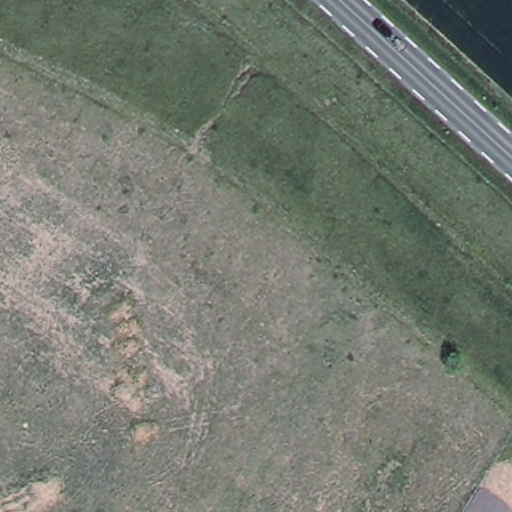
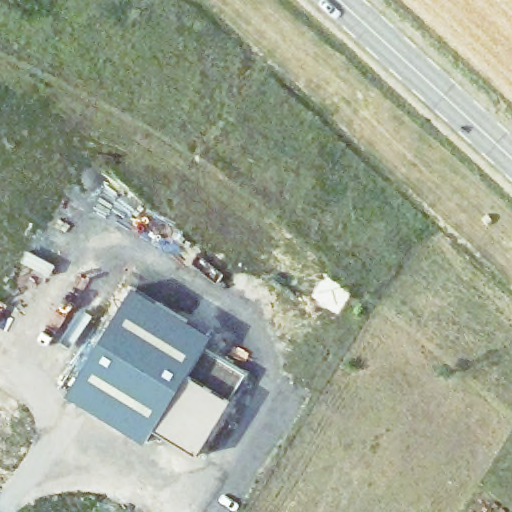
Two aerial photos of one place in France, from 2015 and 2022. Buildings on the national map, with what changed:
new [(155,428),(145,442),(67,393),(135,285),(213,334),(204,348),(247,374),(230,400),(197,454),(155,428)]

